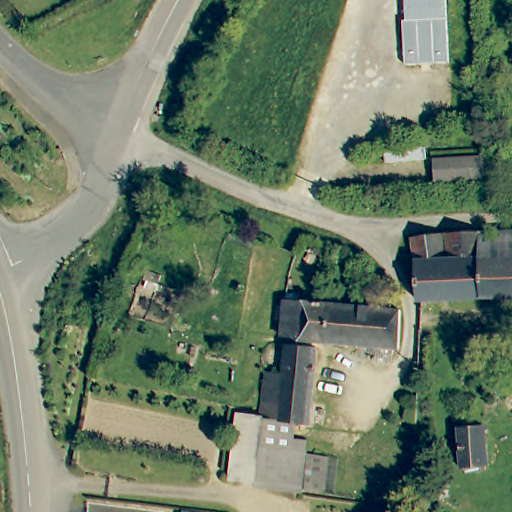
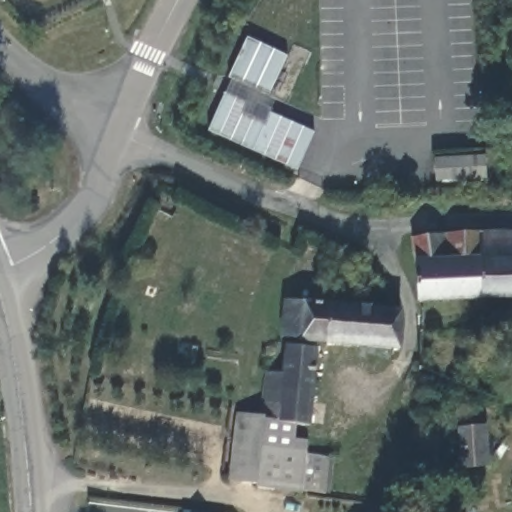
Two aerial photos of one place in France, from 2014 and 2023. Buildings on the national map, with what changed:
demolished [(453,60),(409,62),(407,17),(410,17),(410,0),(451,0),(453,60)]
new [(207,130),(232,78),(228,77),(246,38),(287,56),(270,93),(278,97),(270,113),(314,133),(298,170),(207,130)]
unchanged [(484,175),(434,178),(433,158),(483,155),(484,175)]
unchanged [(488,231),(512,231),(512,295),(427,297),(420,233),(467,228),(488,229),(488,231)]
unchanged [(294,339),(283,338),(285,301),(331,305),(401,312),(401,325),(402,352),(339,345),(333,344),(319,347),(294,339)]
unchanged [(311,425),(264,419),(260,418),(261,415),(268,374),(283,375),(288,346),(319,347),(311,425)]
unchanged [(326,495),(303,492),(230,481),(237,415),(260,418),(264,419),(311,425),(307,455),(330,459),(326,495)]
unchanged [(488,461),(463,463),(458,425),(484,423),(488,461)]

